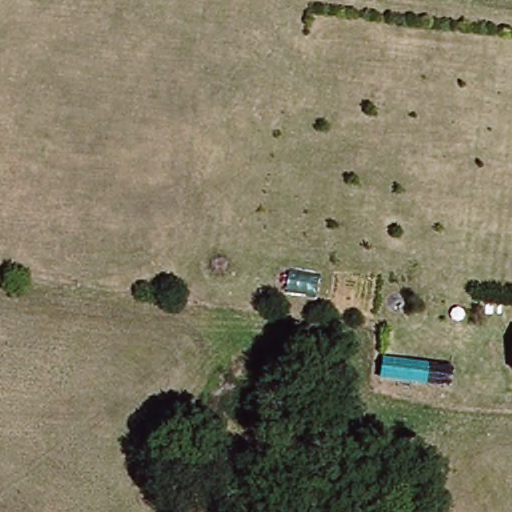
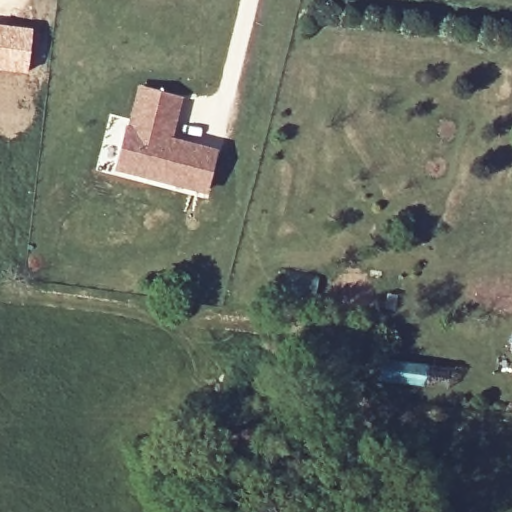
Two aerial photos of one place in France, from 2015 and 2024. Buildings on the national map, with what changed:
new [(34,28),(28,72),(0,69),(0,23),(34,28)]
new [(138,83),(185,96),(174,136),(219,148),(207,197),(114,171),(138,83)]
unchanged [(395,385),(400,362),(451,369),(451,393),(395,385)]

